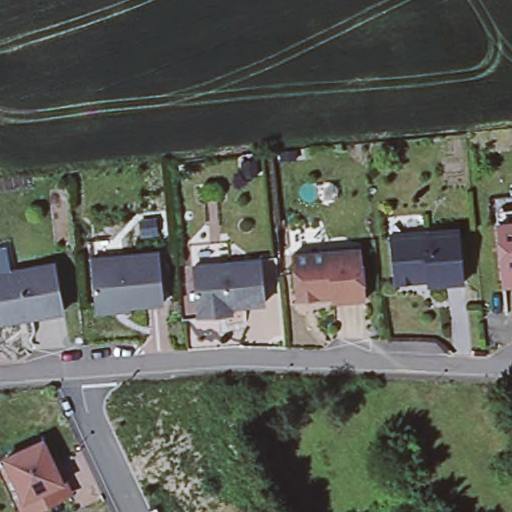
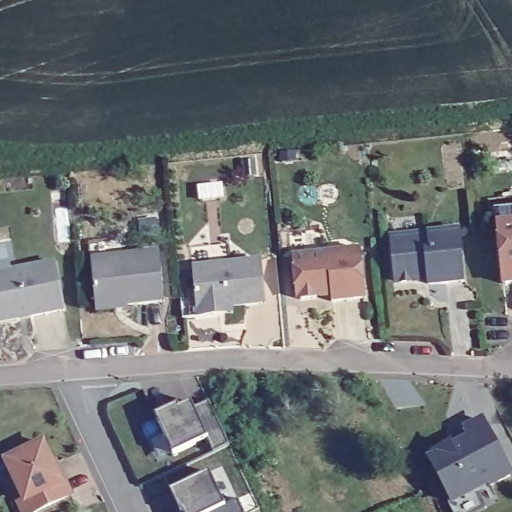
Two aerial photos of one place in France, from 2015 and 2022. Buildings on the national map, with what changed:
unchanged [(495,222),(495,209),(512,209),(512,282),(498,282),(495,222)]
unchanged [(417,237),(454,233),(458,286),(423,289),(423,285),(395,288),(387,281),(383,241),(417,237)]
unchanged [(360,249),(364,299),(332,303),(330,293),(319,294),(317,298),(302,300),(294,294),(290,257),(360,249)]
unchanged [(158,252),(163,301),(125,305),(125,302),(96,305),(91,259),(158,252)]
unchanged [(222,262),(260,258),(264,301),(230,304),(231,313),(197,317),(192,265),(222,262)]
unchanged [(18,270),(54,263),(63,310),(0,323),(0,274),(18,270)]
new [(156,414),(177,404),(178,408),(192,401),(195,408),(209,401),(229,444),(212,451),(208,441),(174,455),(156,414)]
new [(425,456),(467,437),(461,424),(484,414),(490,428),(512,472),(450,505),(425,456)]
unchanged [(56,468),(62,481),(64,479),(71,493),(31,512),(24,512),(19,500),(25,498),(6,458),(43,441),(56,468)]
new [(172,490),(209,473),(224,505),(238,499),(244,512),(183,512),(172,490)]

